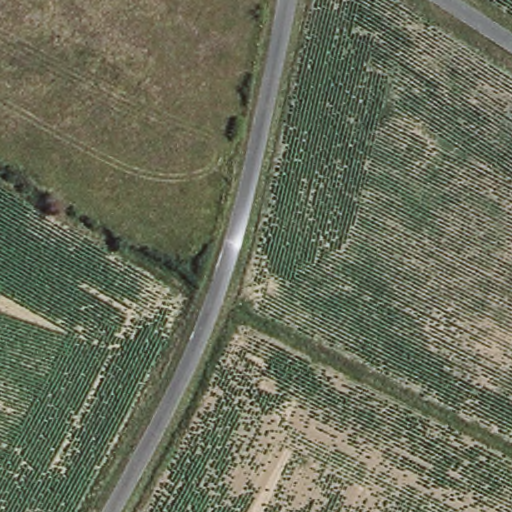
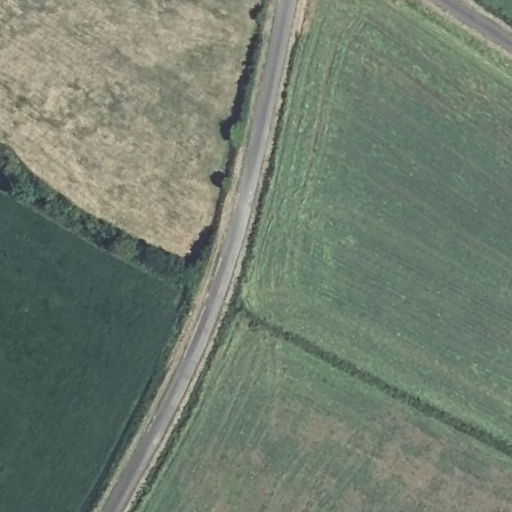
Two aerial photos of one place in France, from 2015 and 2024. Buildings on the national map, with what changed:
[]

